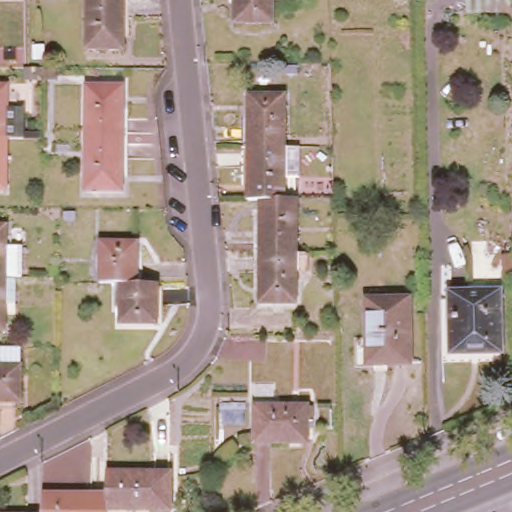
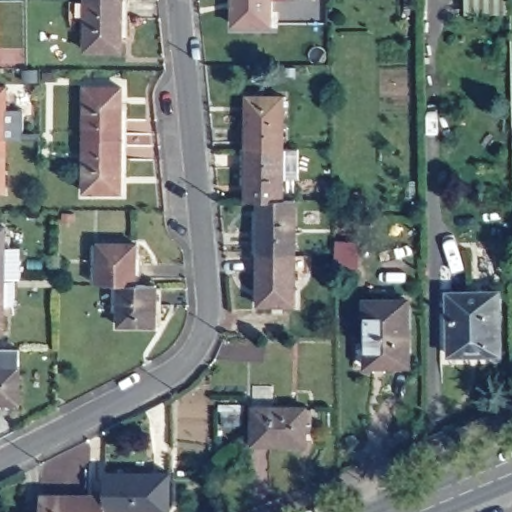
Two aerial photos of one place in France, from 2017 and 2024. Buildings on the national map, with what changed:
unchanged [(90,49),(89,0),(126,0),(126,49),(90,49)]
unchanged [(232,24),(232,0),(271,0),(271,24),(232,24)]
unchanged [(468,10),(468,0),(510,0),(510,8),(468,10)]
unchanged [(37,69),(37,80),(23,80),(23,69),(37,69)]
unchanged [(0,86),(11,86),(11,108),(29,108),(29,137),(11,137),(11,190),(0,190),(0,86)]
unchanged [(90,87),(126,87),(126,138),(90,137),(90,87)]
unchanged [(285,96),(285,148),(247,148),(247,96),(285,96)]
unchanged [(126,190),(90,190),(90,137),(126,138),(126,190)]
unchanged [(300,148),(299,177),(285,177),(285,199),(260,200),(247,200),(247,148),(285,148),(300,148)]
unchanged [(260,200),(285,199),(296,199),(296,202),(309,203),(309,221),(296,221),(296,252),(259,252),(260,200)]
unchanged [(6,249),(21,249),(21,281),(16,281),(16,307),(6,307),(6,334),(0,334),(0,231),(6,230),(6,249)]
unchanged [(137,244),(136,284),(118,284),(99,283),(99,244),(137,244)]
unchanged [(296,304),(259,304),(259,252),(296,252),(296,304)]
unchanged [(156,284),(156,325),(119,325),(118,284),(136,284),(156,284)]
unchanged [(497,352),(447,352),(446,293),(496,292),(497,352)]
unchanged [(371,366),(370,301),(412,299),(414,364),(371,366)]
unchanged [(0,347),(19,347),(19,401),(0,402),(0,347)]
unchanged [(273,411),(306,411),(306,413),(311,413),(312,426),(306,427),(306,448),(254,448),(254,389),(273,389),(273,411)]
unchanged [(106,472),(170,472),(170,510),(106,510),(106,494),(106,472)]
unchanged [(41,493),(106,494),(106,510),(106,512),(41,512),(41,493)]

